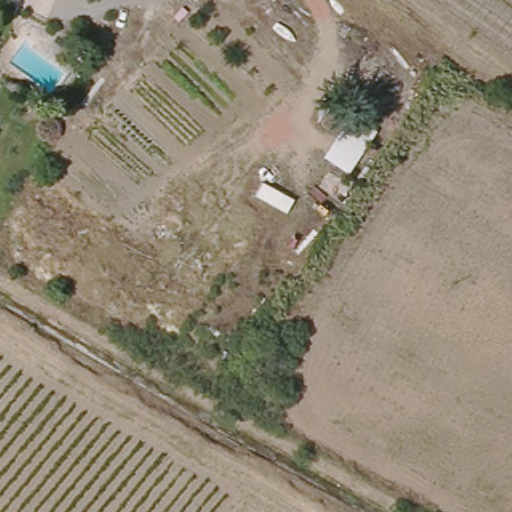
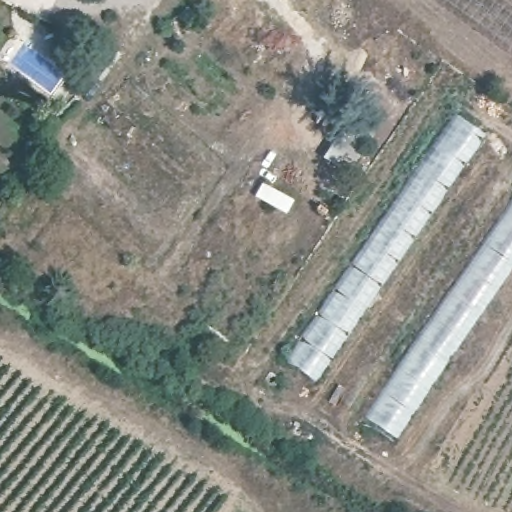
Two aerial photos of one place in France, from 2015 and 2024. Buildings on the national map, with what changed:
demolished [(512,0),(512,66),(419,0),(512,0)]
new [(484,131),(318,380),(285,360),(452,111),(484,131)]
new [(360,421),(512,191),(512,271),(395,442),(360,421)]

